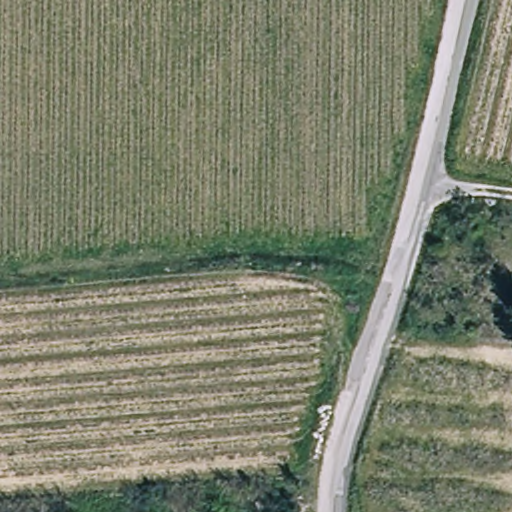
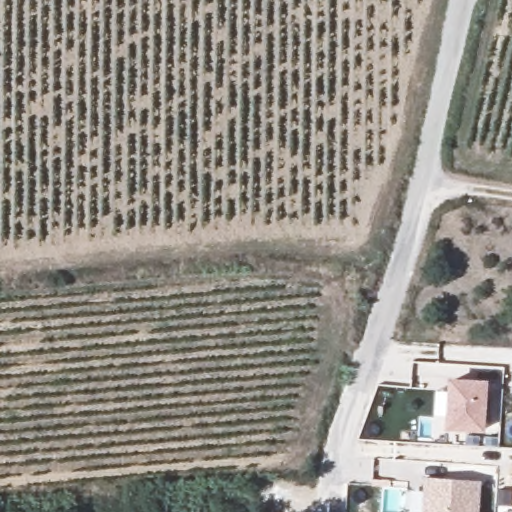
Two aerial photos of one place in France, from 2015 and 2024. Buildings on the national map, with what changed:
new [(448,378),(483,379),(480,426),(445,424),(448,378)]
new [(423,474),(478,478),(476,512),(421,512),(423,474)]

